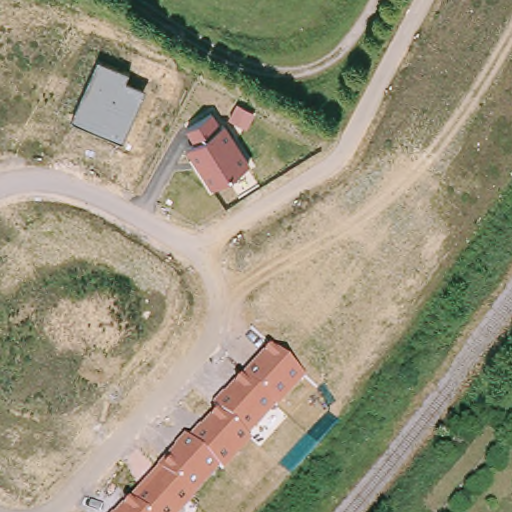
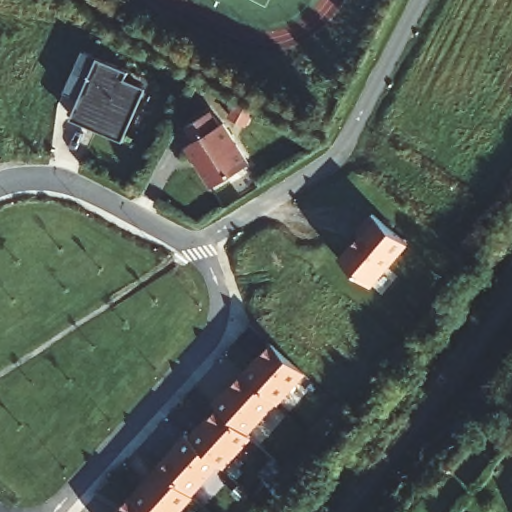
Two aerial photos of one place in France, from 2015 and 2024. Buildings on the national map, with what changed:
unchanged [(147,88),(122,141),(71,119),(98,58),(128,71),(125,80),(147,88)]
unchanged [(220,125),(225,121),(250,163),(210,187),(185,145),(195,140),(186,125),(213,110),(220,125)]
new [(368,236),(365,233),(377,217),(410,245),(373,287),(345,263),(368,236)]
unchanged [(278,406),(277,404),(248,435),(252,439),(225,469),(220,466),(193,496),(196,498),(182,512),(117,512),(130,496),(158,467),(156,466),(175,445),(174,444),(185,434),(188,436),(200,423),(202,424),(218,406),(212,402),(223,391),(225,392),(270,344),(305,376),(278,406)]

